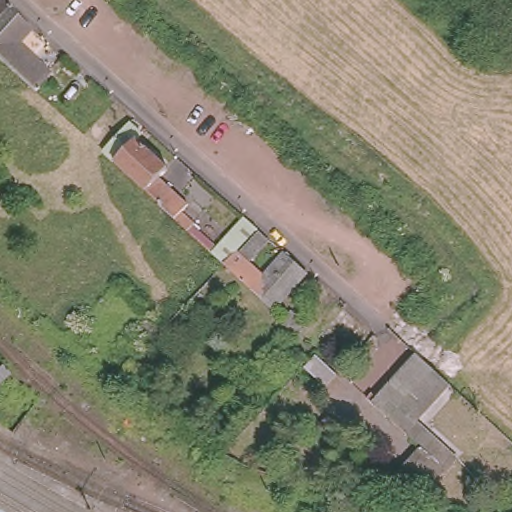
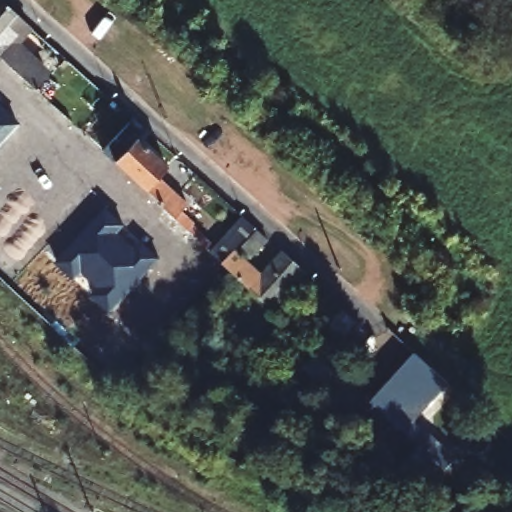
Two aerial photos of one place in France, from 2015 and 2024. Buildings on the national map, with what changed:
unchanged [(8,43),(42,74),(29,89),(0,63),(0,5),(23,26),(8,43)]
new [(0,142),(0,106),(18,123),(0,142)]
unchanged [(118,128),(127,119),(147,138),(118,169),(110,162),(130,140),(118,128)]
unchanged [(148,142),(160,153),(156,158),(186,187),(177,196),(205,224),(200,232),(212,243),(206,250),(178,224),(180,223),(123,170),(148,142)]
new [(90,295),(98,286),(81,271),(74,279),(55,263),(105,209),(160,259),(110,313),(90,295)]
unchanged [(286,258),(310,279),(277,315),(241,281),(228,269),(215,257),(247,222),(260,233),(239,257),(265,280),(286,258)]
unchanged [(254,265),(243,255),(254,244),(261,235),(272,244),(254,265)]
unchanged [(440,379),(444,383),(428,401),(411,419),(410,419),(415,424),(451,458),(440,470),(415,446),(368,402),(412,353),(440,379)]
unchanged [(131,368),(146,378),(136,391),(122,381),(131,368)]
unchanged [(337,425),(319,448),(307,438),(326,415),(337,425)]
unchanged [(440,470),(419,493),(393,469),(411,450),(415,446),(440,470)]
unchanged [(485,507),(487,502),(512,508),(512,512),(484,512),(485,507)]

